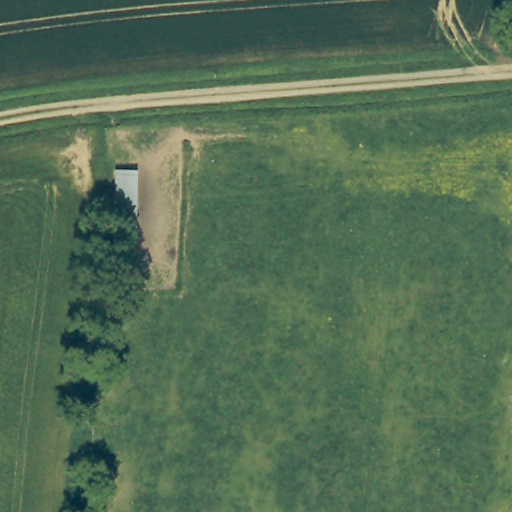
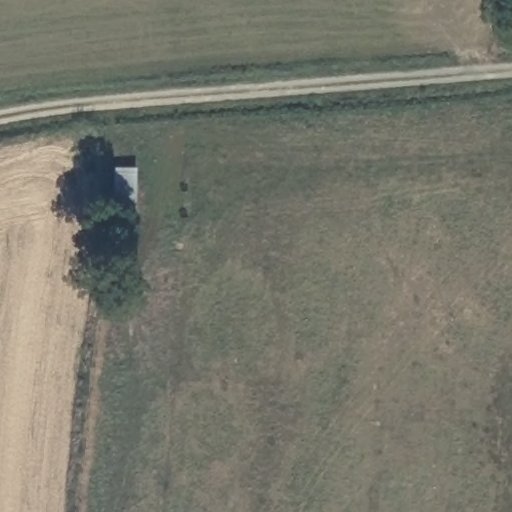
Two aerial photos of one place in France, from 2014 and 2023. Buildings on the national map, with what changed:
unchanged [(126,170),(115,247),(95,244),(106,168),(126,170)]

